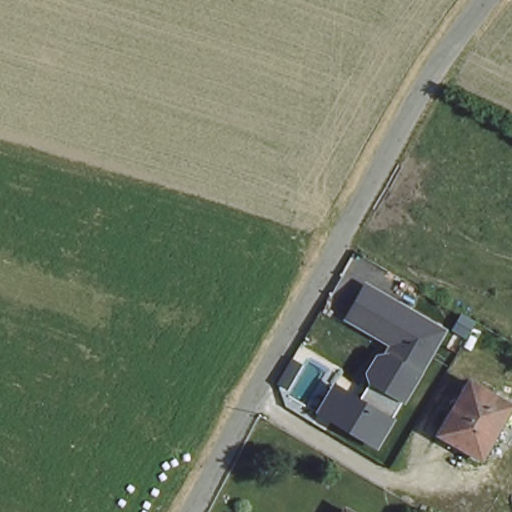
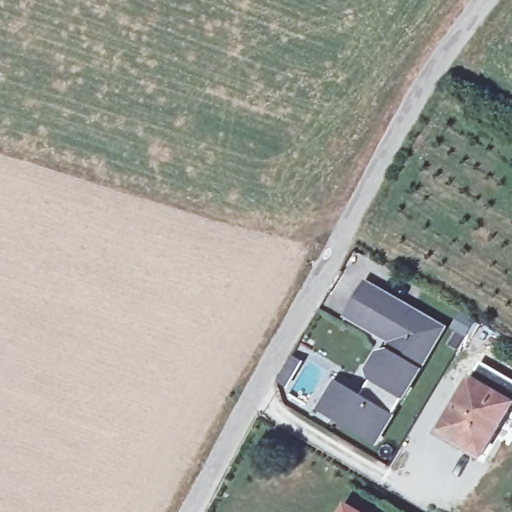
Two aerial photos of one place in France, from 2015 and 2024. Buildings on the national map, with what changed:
unchanged [(366,281),(446,328),(379,449),(316,411),(334,380),(362,397),(369,383),(364,371),(374,353),(385,351),(389,345),(344,319),(366,281)]
unchanged [(510,402),(480,456),(437,432),(468,378),(510,402)]
unchanged [(345,512),(347,509),(352,512),(345,512)]

